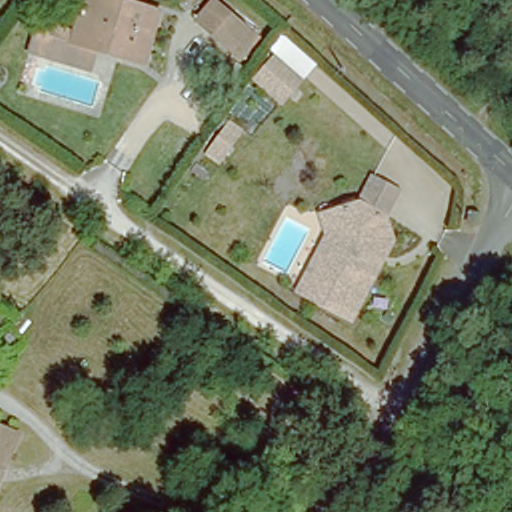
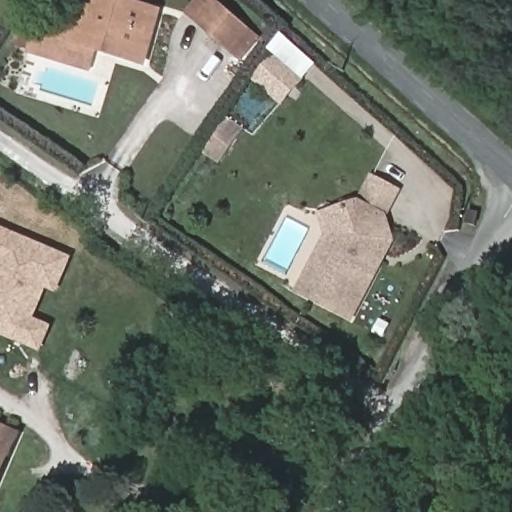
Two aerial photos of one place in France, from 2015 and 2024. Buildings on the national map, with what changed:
unchanged [(77,9),(95,12),(96,0),(123,0),(152,6),(143,55),(117,50),(117,45),(97,41),(97,46),(72,41),(74,29),(77,9)]
unchanged [(222,0),(250,25),(231,49),(194,14),(205,0),(222,0)]
unchanged [(36,20),(74,29),(72,41),(97,46),(97,41),(117,45),(117,50),(143,55),(152,6),(162,9),(147,67),(99,54),(92,72),(27,52),(36,20)]
unchanged [(278,96),(249,77),(266,52),(295,72),(278,96)]
unchanged [(355,219),(346,195),(371,187),(375,177),(400,189),(387,214),(397,241),(358,320),(317,300),(355,219)]
unchanged [(304,293),(340,218),(332,199),(346,195),(355,219),(317,300),(304,293)]
new [(0,336),(0,227),(73,257),(57,293),(47,290),(34,319),(52,327),(41,353),(0,336)]
unchanged [(0,428),(15,435),(5,457),(0,455),(0,428)]

